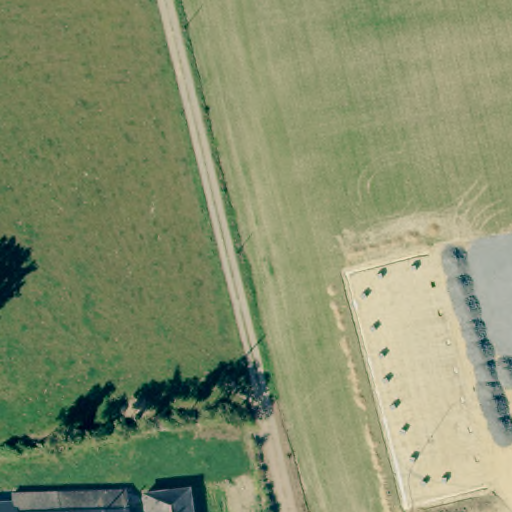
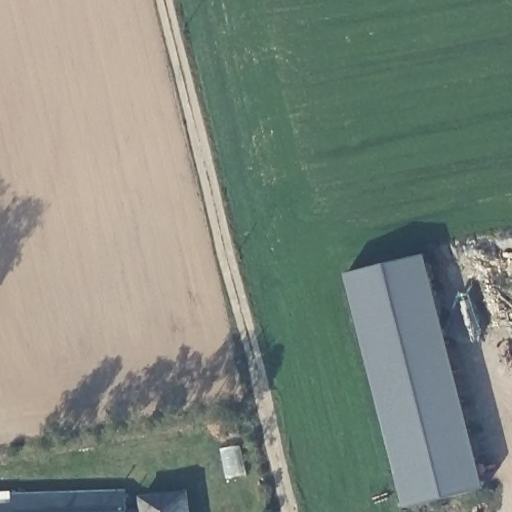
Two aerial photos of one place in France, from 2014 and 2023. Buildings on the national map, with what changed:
new [(346,274),(424,256),(484,489),(406,508),(346,274)]
unchanged [(0,512),(12,510),(11,502),(124,499),(125,512),(0,512)]
unchanged [(142,503),(186,500),(188,512),(143,512),(142,503)]

